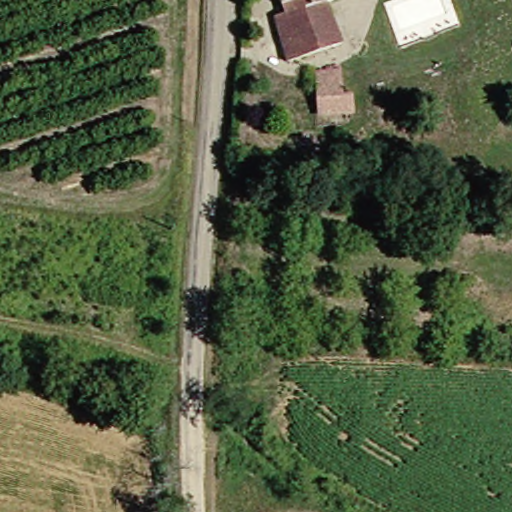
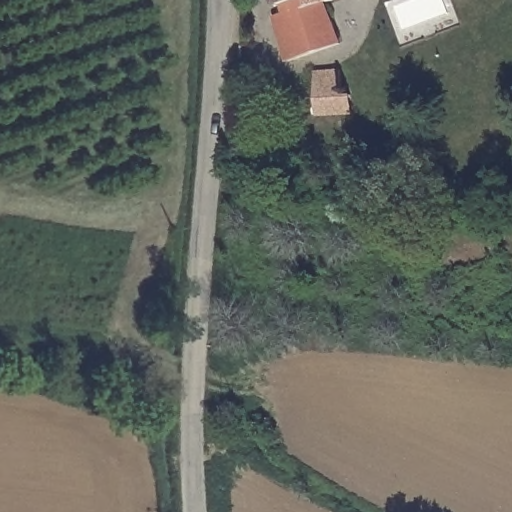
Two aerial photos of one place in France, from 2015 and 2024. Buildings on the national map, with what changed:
unchanged [(333,0),(347,44),(288,65),(275,20),(282,17),(276,0),(334,0),(333,0)]
unchanged [(362,75),(366,116),(329,119),(325,79),(362,75)]

